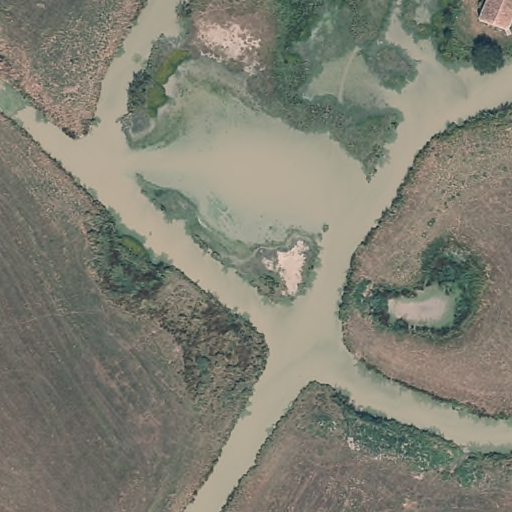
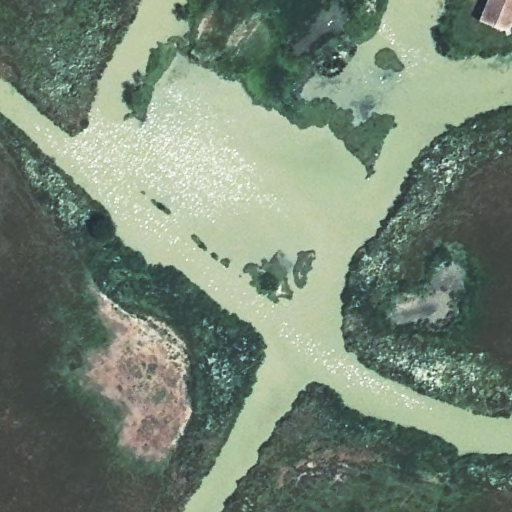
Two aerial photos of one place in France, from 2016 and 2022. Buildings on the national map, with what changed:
unchanged [(502,37),(471,20),(483,0),(512,0),(512,19),(502,37)]

